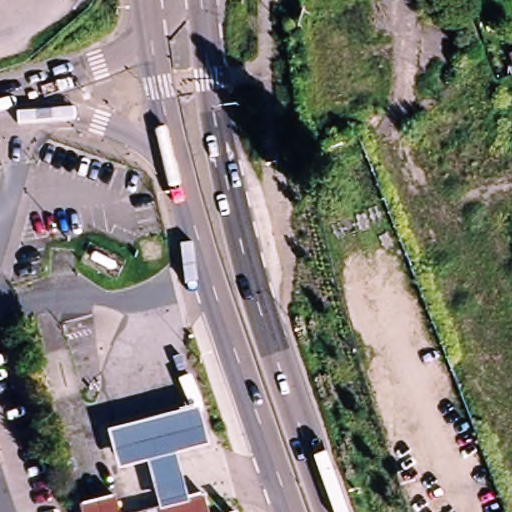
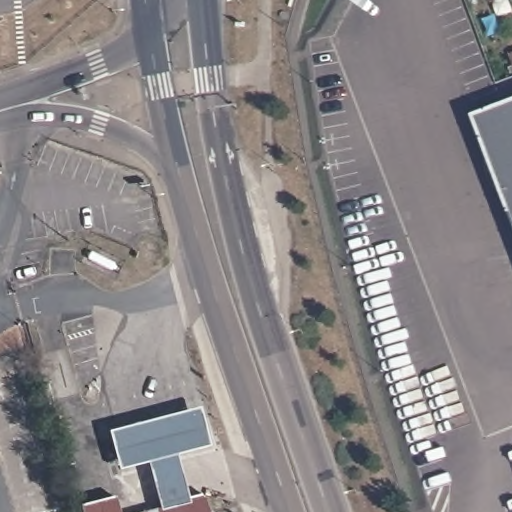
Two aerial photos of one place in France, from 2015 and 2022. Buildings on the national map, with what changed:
new [(512,99),(512,214),(473,114),(512,99)]
unchanged [(200,408),(210,449),(178,458),(190,503),(204,498),(208,512),(150,512),(159,510),(147,464),(119,472),(108,433),(200,408)]
unchanged [(80,509),(115,501),(119,512),(80,512),(80,509)]

